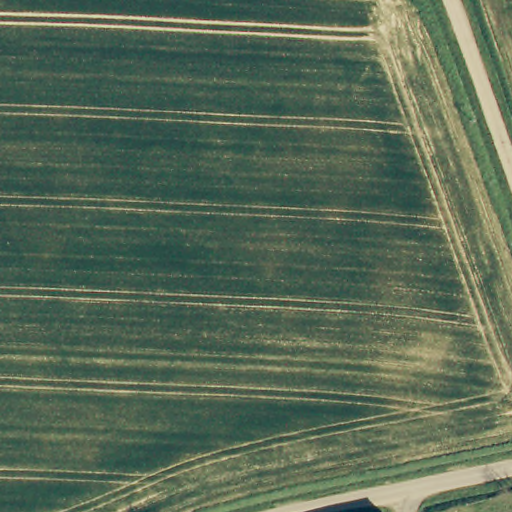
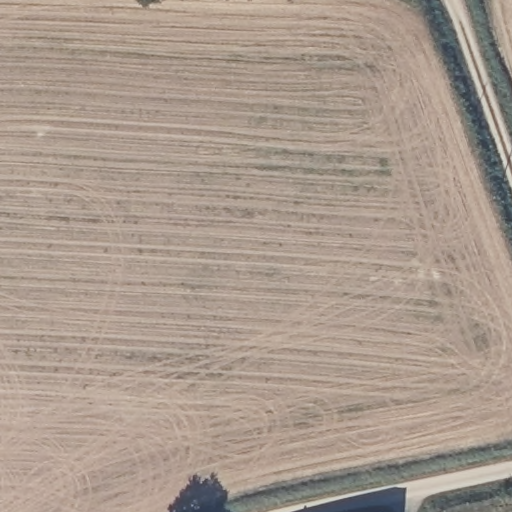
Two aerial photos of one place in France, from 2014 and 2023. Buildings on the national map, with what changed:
[]

